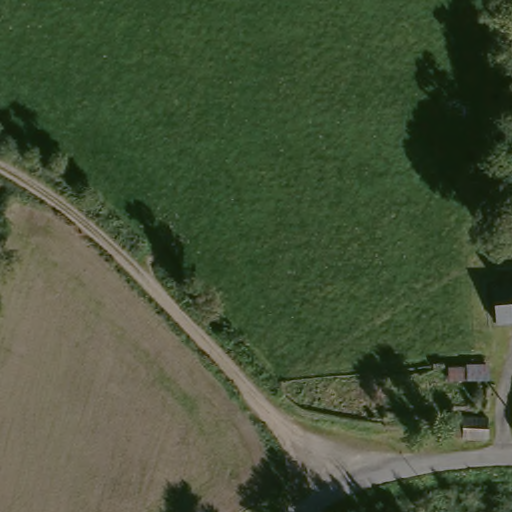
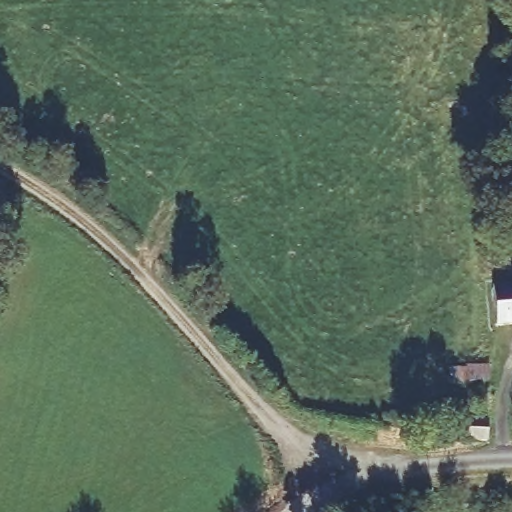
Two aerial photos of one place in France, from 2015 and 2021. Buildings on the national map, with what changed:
unchanged [(492,290),(512,288),(512,325),(495,326),(492,290)]
unchanged [(490,384),(451,387),(451,368),(489,366),(490,384)]
unchanged [(453,446),(461,423),(480,423),(485,423),(486,446),(453,446)]

